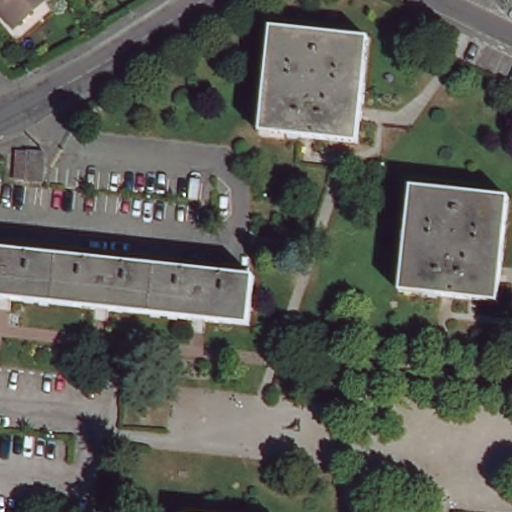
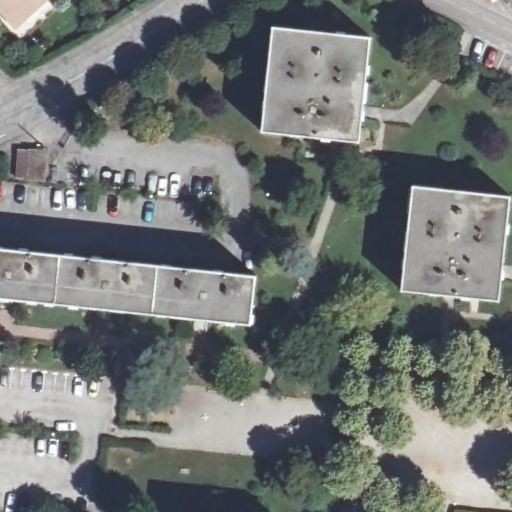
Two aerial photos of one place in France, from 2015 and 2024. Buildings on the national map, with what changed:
unchanged [(16,22),(0,5),(0,0),(41,0),(16,22)]
unchanged [(261,132),(271,29),(371,39),(359,144),(261,132)]
unchanged [(19,179),(21,150),(48,151),(45,180),(19,179)]
unchanged [(399,287),(411,184),(508,194),(497,298),(399,287)]
unchanged [(0,247),(245,274),(239,322),(0,297),(0,247)]

